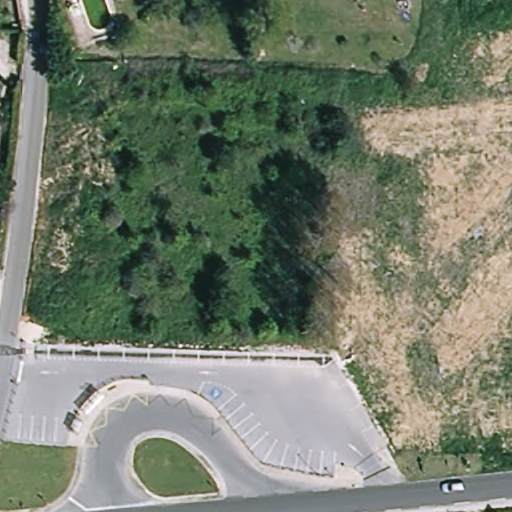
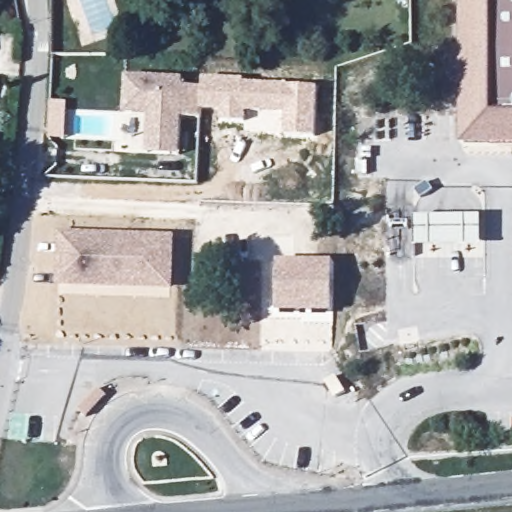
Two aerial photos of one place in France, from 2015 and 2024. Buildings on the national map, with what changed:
new [(512,0),(512,147),(460,147),(461,0),(512,0)]
new [(154,115),(129,114),(132,77),(189,80),(188,87),(208,88),(206,119),(186,119),(184,144),(184,156),(152,155),(152,142),(154,115)]
new [(245,84),(319,87),(317,137),(284,135),(286,114),(248,112),(247,122),(221,120),(221,110),(207,110),(208,88),(202,88),(203,77),(245,79),(245,84)]
new [(416,221),(485,221),(484,256),(416,256),(416,221)]
new [(63,228),(100,231),(99,233),(175,239),(170,288),(58,278),(63,228)]
new [(335,262),(333,313),(277,312),(278,261),(335,262)]
new [(337,380),(347,396),(337,402),(327,386),(337,380)]

